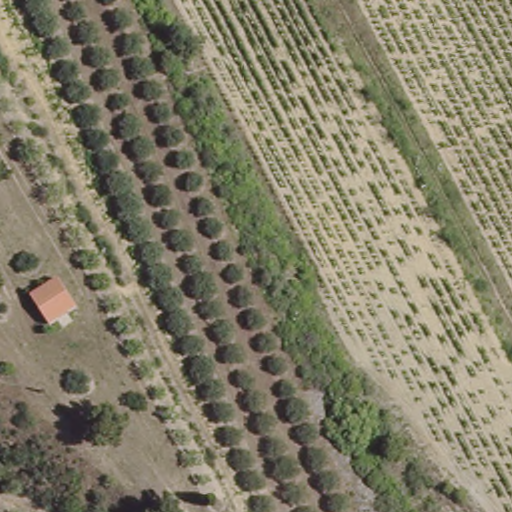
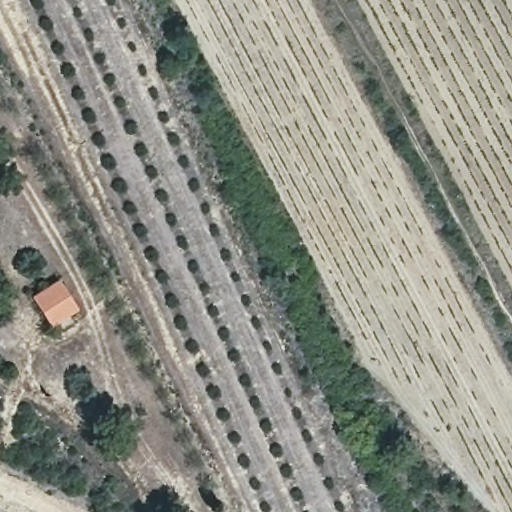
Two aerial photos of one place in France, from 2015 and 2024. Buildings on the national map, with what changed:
unchanged [(56,288),(71,319),(47,332),(32,300),(56,288)]

